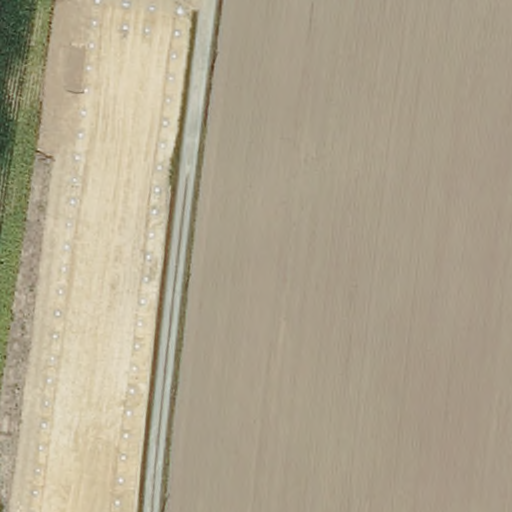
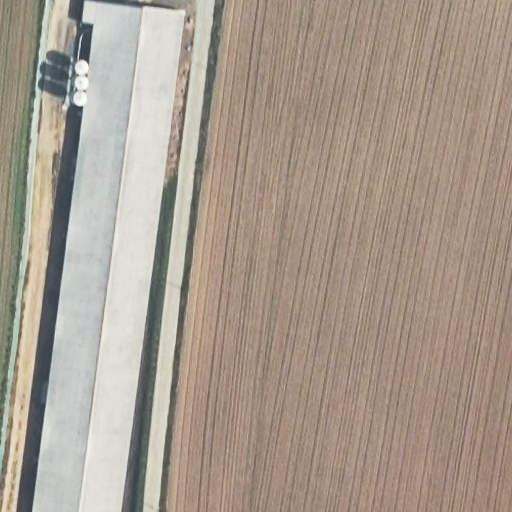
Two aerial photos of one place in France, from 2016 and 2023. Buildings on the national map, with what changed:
new [(79,21),(81,0),(103,0),(184,10),(121,512),(31,512),(92,23),(79,21)]

